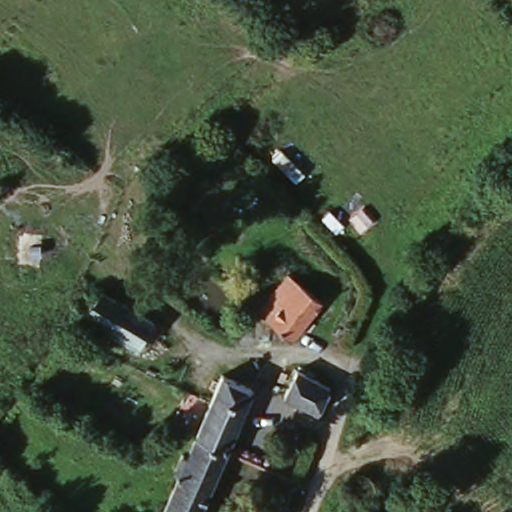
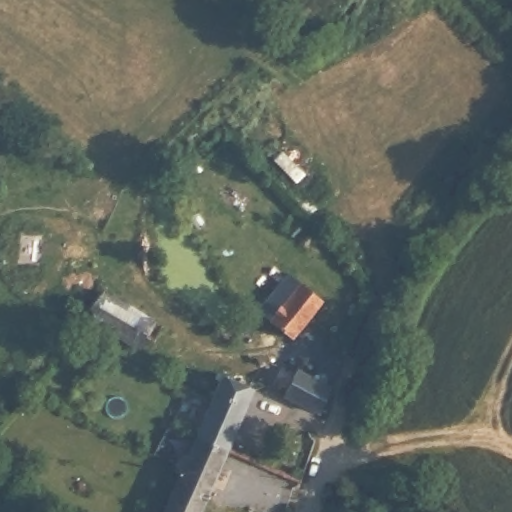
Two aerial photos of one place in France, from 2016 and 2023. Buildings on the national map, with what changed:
unchanged [(282,272),(303,286),(320,298),(292,338),(255,310),(282,272)]
unchanged [(84,299),(94,285),(158,322),(142,348),(86,317),(77,325),(65,319),(84,299)]
unchanged [(204,397),(180,386),(183,377),(192,361),(250,381),(226,447),(190,434),(204,397)]
unchanged [(336,376),(315,420),(284,400),(310,363),(336,376)]
unchanged [(202,512),(160,512),(177,467),(170,463),(175,451),(182,455),(190,434),(226,447),(202,512)]

